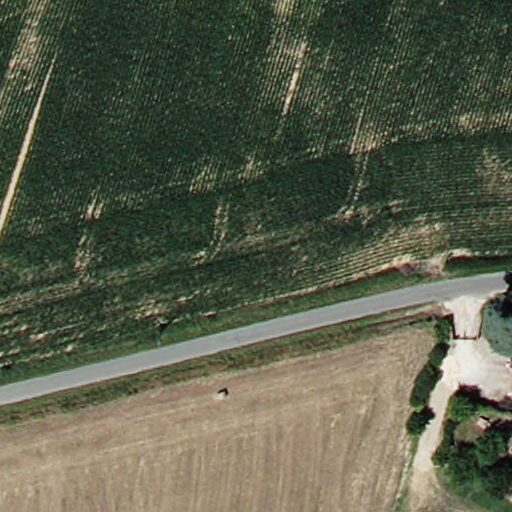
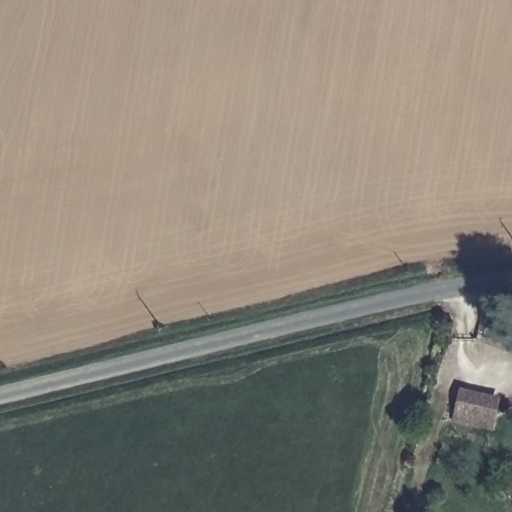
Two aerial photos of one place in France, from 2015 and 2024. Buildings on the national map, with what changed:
new [(452,420),(460,387),(501,396),(493,429),(452,420)]

